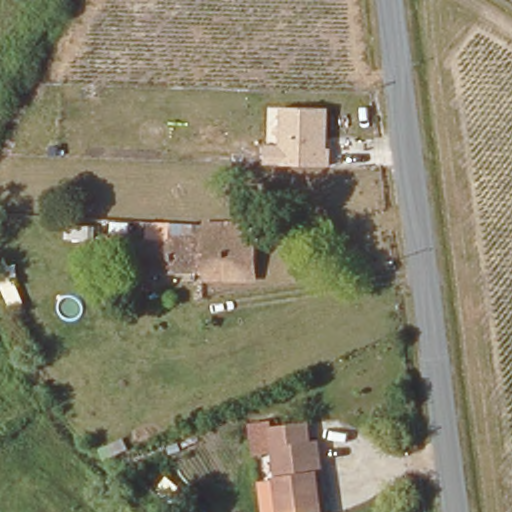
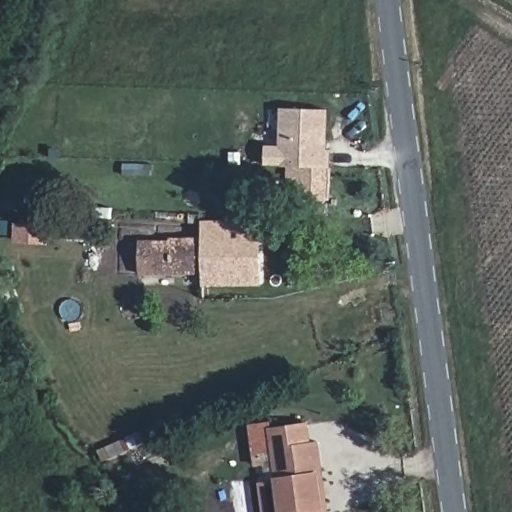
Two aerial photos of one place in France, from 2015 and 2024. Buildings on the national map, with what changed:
unchanged [(265,146),(280,147),(282,129),(283,108),(327,110),(325,131),(324,150),(328,150),(327,167),(316,167),(264,164),(265,146)]
unchanged [(245,194),(245,214),(226,212),(224,192),(245,194)]
unchanged [(169,244),(169,225),(257,227),(258,246),(255,246),(255,287),(202,286),(202,278),(137,278),(137,243),(169,244)]
unchanged [(268,425),(271,430),(308,426),(310,445),(317,444),(322,475),(317,476),(321,512),(276,512),(270,455),(257,457),(247,430),(268,425)]

